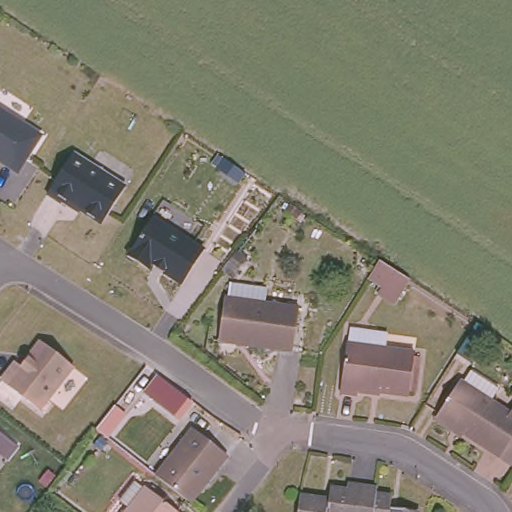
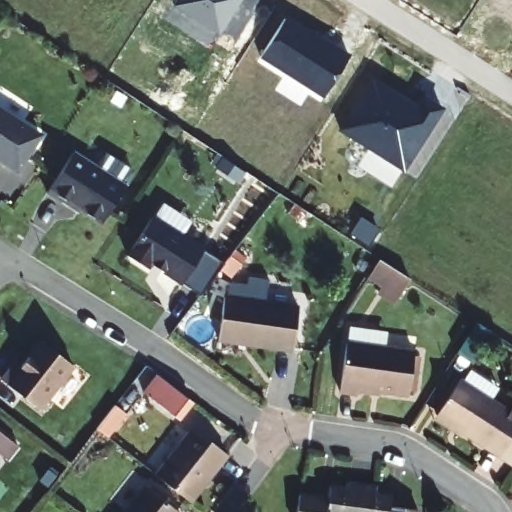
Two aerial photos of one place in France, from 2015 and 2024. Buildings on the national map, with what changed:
new [(172,5),(175,0),(240,0),(218,34),(172,5)]
new [(259,58),(287,15),(350,55),(323,97),(259,58)]
new [(415,104),(424,95),(445,108),(403,169),(342,133),(372,76),(415,104)]
unchanged [(15,176),(0,166),(0,115),(38,140),(15,176)]
unchanged [(100,227),(60,206),(58,210),(43,202),(65,160),(120,189),(100,227)]
unchanged [(180,287),(149,267),(146,272),(126,259),(151,221),(202,253),(180,287)]
unchanged [(233,259),(243,267),(229,286),(218,278),(233,259)]
unchanged [(377,263),(410,284),(395,306),(377,294),(381,286),(368,277),(377,263)]
unchanged [(297,313),(292,355),(218,345),(223,305),(226,305),(228,290),(264,294),(262,309),(297,313)]
unchanged [(38,414),(0,386),(0,383),(14,366),(19,371),(39,345),(71,370),(38,414)]
unchanged [(415,354),(408,398),(356,392),(355,397),(339,395),(346,345),(415,354)]
unchanged [(429,418),(451,384),(454,385),(464,370),(492,388),(482,403),(502,415),(507,407),(512,411),(512,459),(506,468),(458,436),(454,443),(425,424),(429,418)]
unchanged [(184,499),(155,477),(191,431),(225,456),(204,483),(189,503),(184,499)]
unchanged [(117,500),(133,481),(144,489),(144,488),(174,512),(125,512),(127,509),(117,500)]
unchanged [(327,501),(329,489),(345,491),(345,487),(359,489),(355,512),(296,512),(298,496),(327,501)]
unchanged [(375,496),(391,498),(389,508),(411,512),(355,512),(359,489),(375,491),(375,496)]

